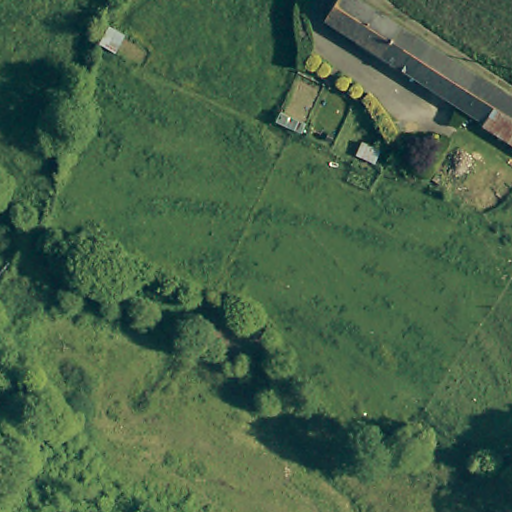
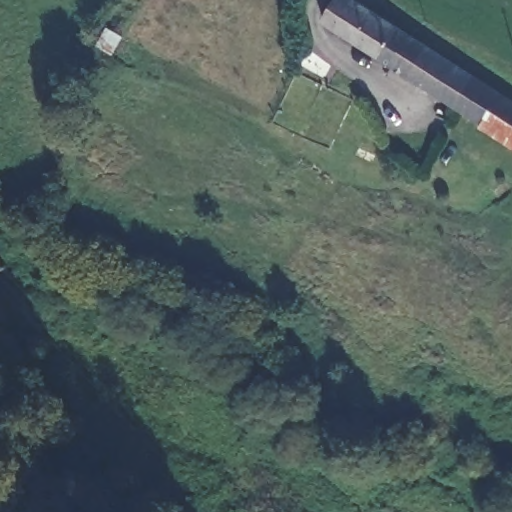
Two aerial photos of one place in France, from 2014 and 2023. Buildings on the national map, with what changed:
unchanged [(321,16),(331,0),(360,0),(498,92),(479,120),(321,16)]
unchanged [(477,124),(479,120),(498,92),(512,102),(512,144),(511,145),(477,124)]
unchanged [(511,145),(512,144),(512,146),(511,145)]

